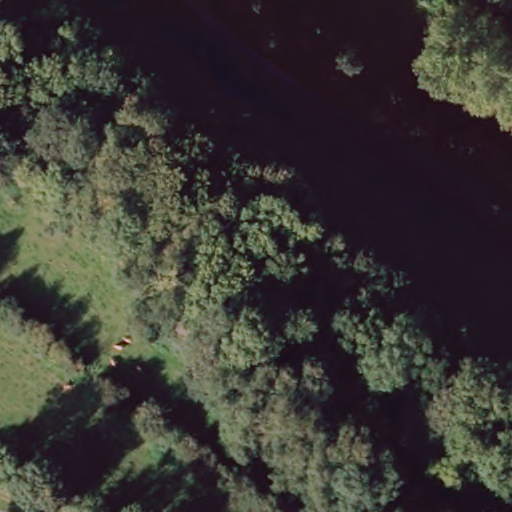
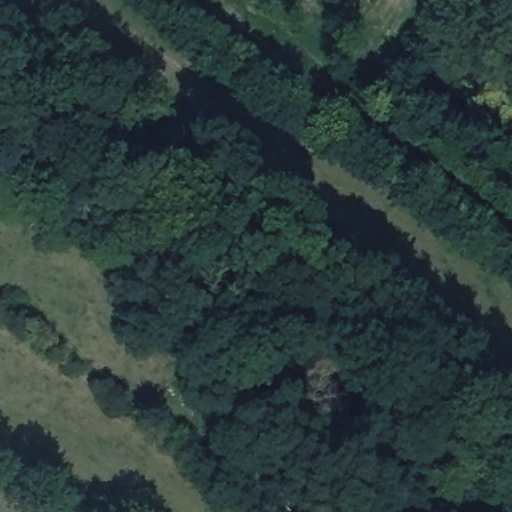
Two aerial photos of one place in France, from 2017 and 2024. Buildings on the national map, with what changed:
unchanged [(304,507),(300,512),(279,512),(260,496),(272,481),(304,507)]

